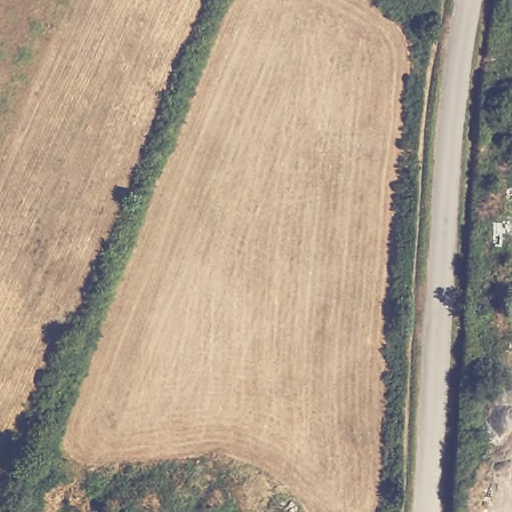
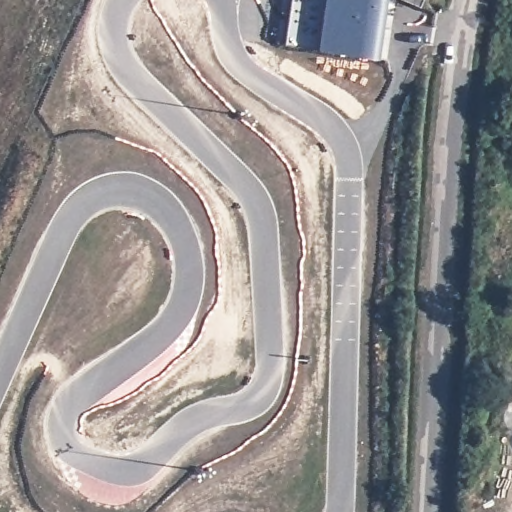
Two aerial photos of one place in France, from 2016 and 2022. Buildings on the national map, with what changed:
new [(388,0),(378,60),(285,44),(292,0),(388,0)]

